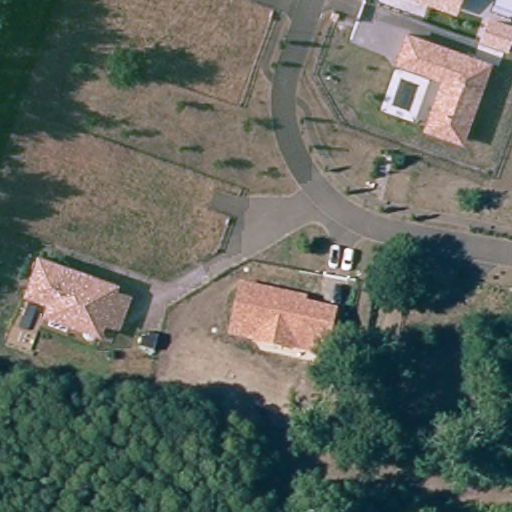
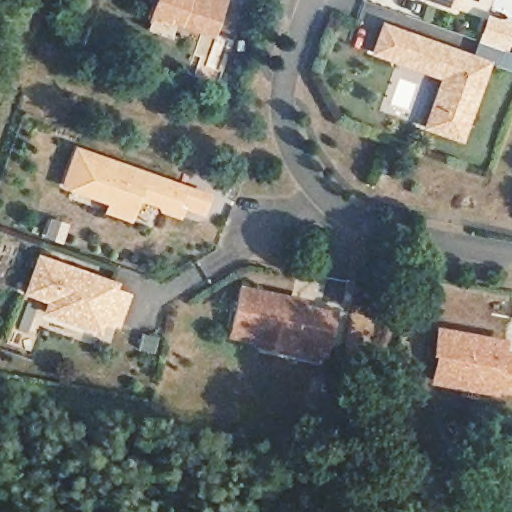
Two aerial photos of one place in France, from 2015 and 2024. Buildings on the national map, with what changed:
new [(149,13),(153,0),(227,0),(215,35),(181,24),(149,13)]
unchanged [(424,0),(461,0),(457,12),(424,0)]
unchanged [(478,40),(487,13),(512,22),(512,37),(508,49),(478,40)]
unchanged [(441,77),(395,62),(372,54),(383,21),(407,29),(492,59),(464,142),(422,128),(441,77)]
new [(76,146),(211,193),(204,215),(184,208),(182,217),(160,210),(161,206),(139,200),(132,222),(105,211),(107,202),(61,186),(76,146)]
unchanged [(41,313),(45,302),(22,294),(37,252),(119,281),(117,287),(132,295),(120,331),(104,325),(100,333),(41,313)]
unchanged [(227,337),(239,284),(307,297),(306,303),(337,310),(327,357),(227,337)]
new [(507,351),(512,352),(512,394),(498,392),(497,396),(431,383),(437,327),(508,338),(507,351)]

